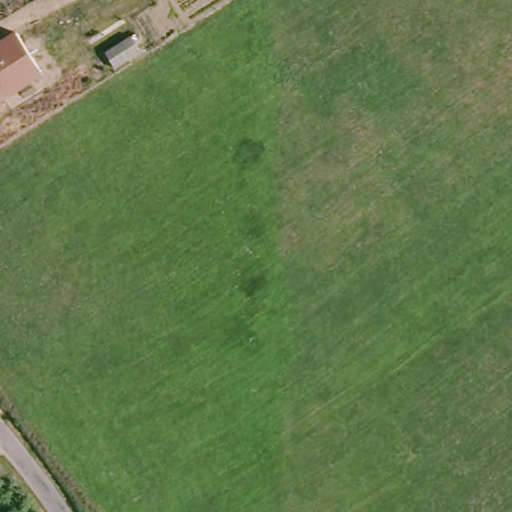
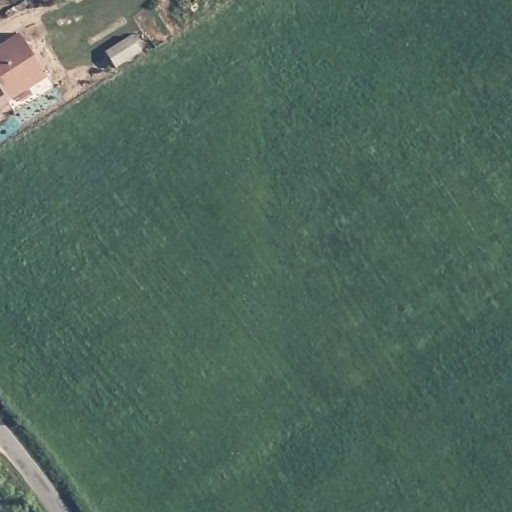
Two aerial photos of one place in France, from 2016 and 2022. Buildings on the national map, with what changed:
unchanged [(0,39),(11,32),(36,71),(38,74),(0,98),(0,39)]

